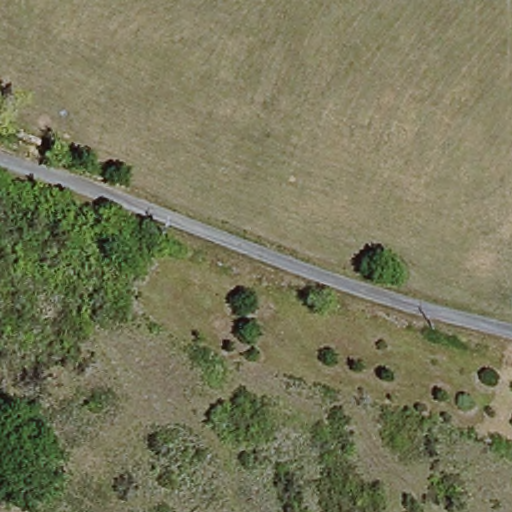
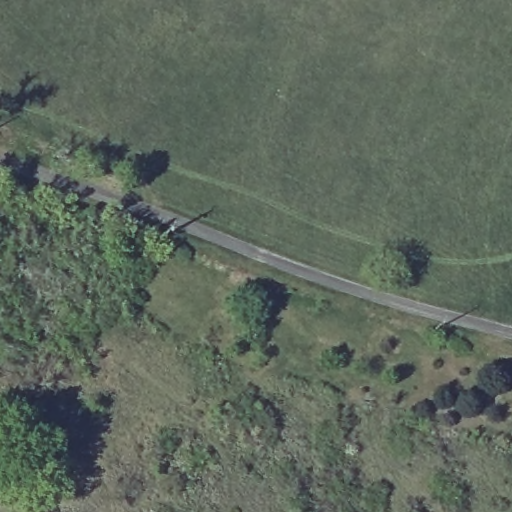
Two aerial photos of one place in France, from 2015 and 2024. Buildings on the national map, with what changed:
[]

